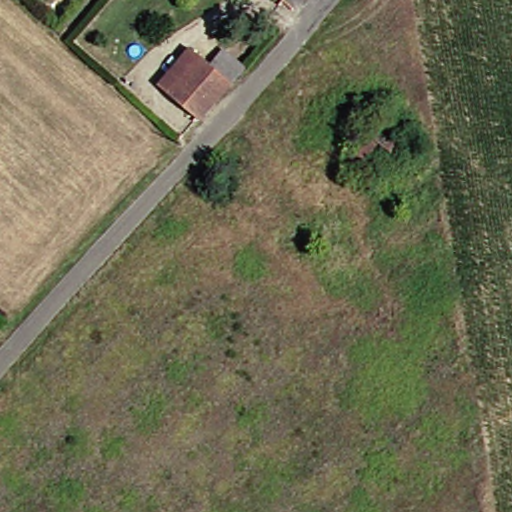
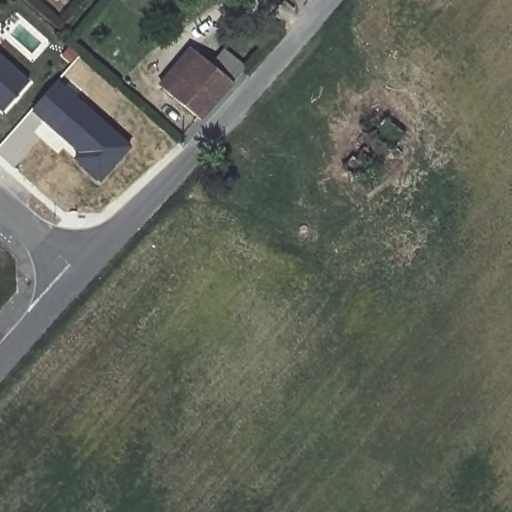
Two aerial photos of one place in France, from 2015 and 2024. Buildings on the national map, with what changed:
unchanged [(171,92),(162,86),(194,48),(202,55),(214,65),(226,50),(250,69),(237,84),(206,121),(171,92)]
new [(29,83),(4,112),(0,108),(0,58),(29,83)]
new [(74,159),(79,154),(32,112),(59,82),(132,147),(100,183),(74,159)]
unchanged [(351,153),(367,131),(375,137),(388,118),(411,135),(381,175),(368,166),(359,179),(351,172),(346,170),(347,169),(356,157),(351,153)]

